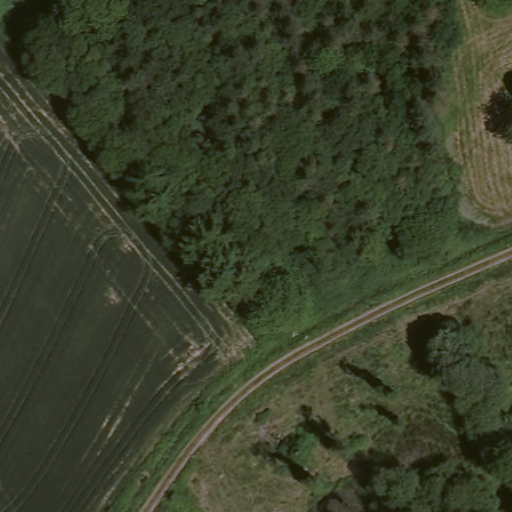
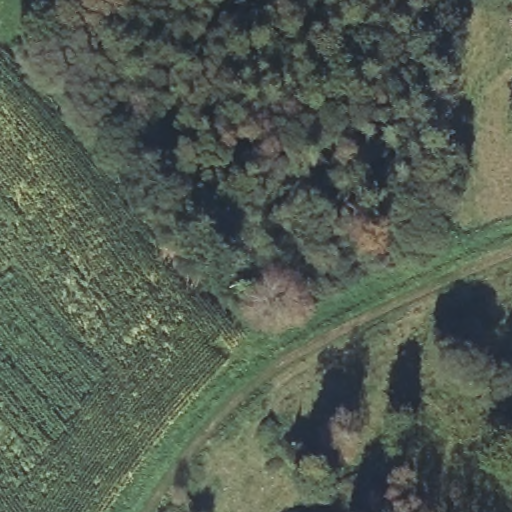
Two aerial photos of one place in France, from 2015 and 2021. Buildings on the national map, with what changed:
[]

